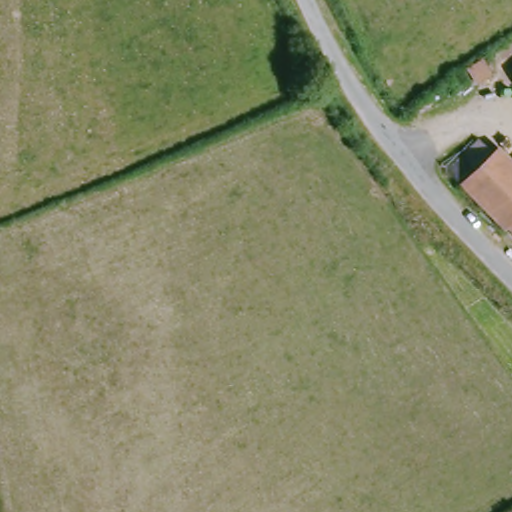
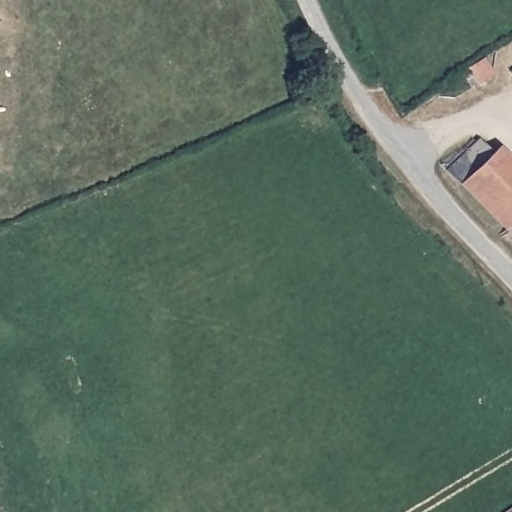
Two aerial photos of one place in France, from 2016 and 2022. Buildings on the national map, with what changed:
unchanged [(512,230),(509,232),(467,183),(478,173),(465,159),(482,138),(500,153),(503,147),(512,157),(512,230)]

